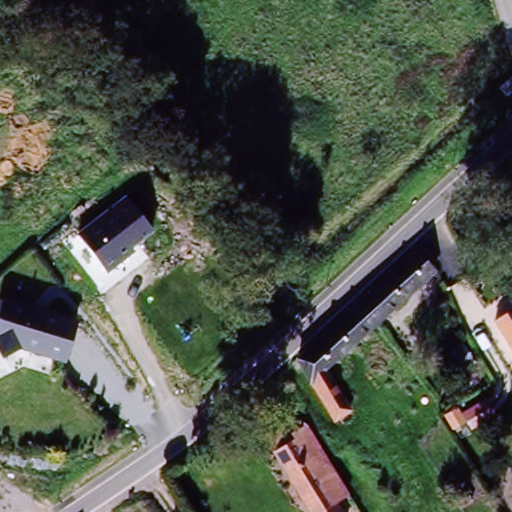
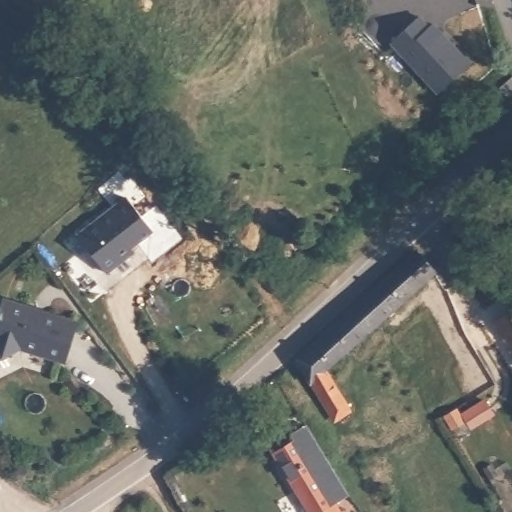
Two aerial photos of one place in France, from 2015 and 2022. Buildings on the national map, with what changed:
new [(420,16),(430,26),(433,23),(471,63),(440,92),(392,42),(420,16)]
new [(500,87),(512,77),(512,91),(507,95),(500,87)]
unchanged [(150,236),(132,249),(135,254),(105,273),(75,235),(122,200),(150,236)]
unchanged [(322,367),(345,407),(331,417),(307,380),(296,357),(403,260),(405,262),(415,252),(428,270),(322,367)]
unchanged [(79,321),(65,366),(20,351),(0,358),(0,303),(2,296),(79,321)]
unchanged [(512,313),(512,346),(497,322),(512,313)]
unchanged [(343,495),(332,502),(339,512),(309,512),(262,434),(282,421),(290,434),(302,427),(335,480),(343,495)]

